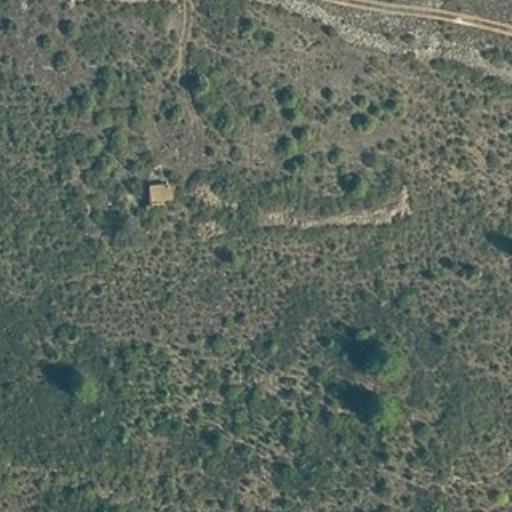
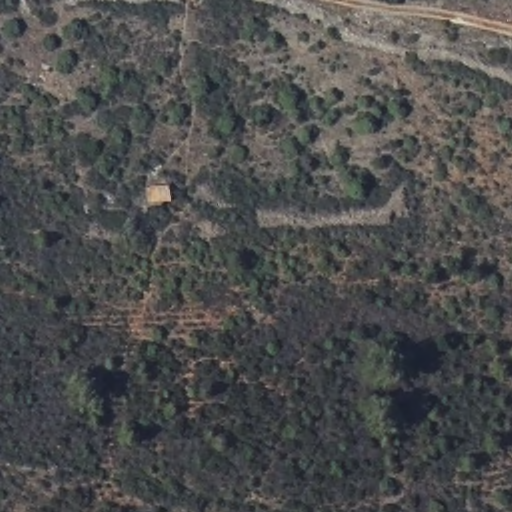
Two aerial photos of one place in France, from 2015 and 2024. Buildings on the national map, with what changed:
unchanged [(147,204),(147,182),(167,180),(170,196),(147,204)]

